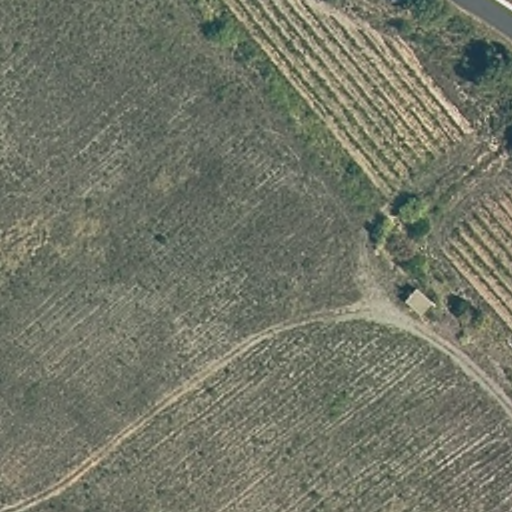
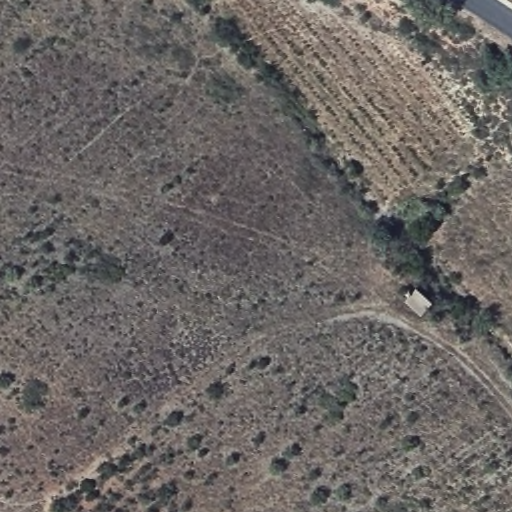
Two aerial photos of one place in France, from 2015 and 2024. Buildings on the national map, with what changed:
unchanged [(439,302),(423,317),(399,301),(417,283),(439,302)]

